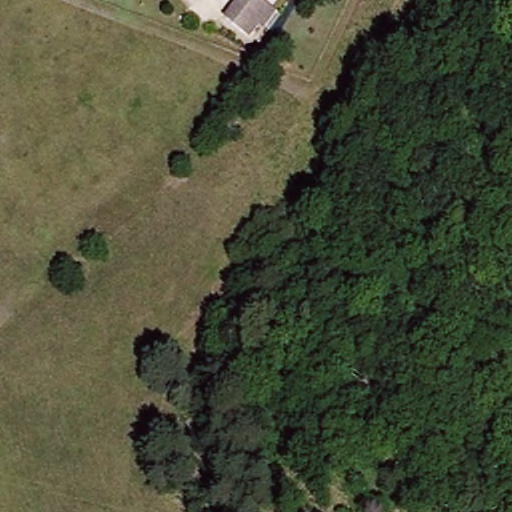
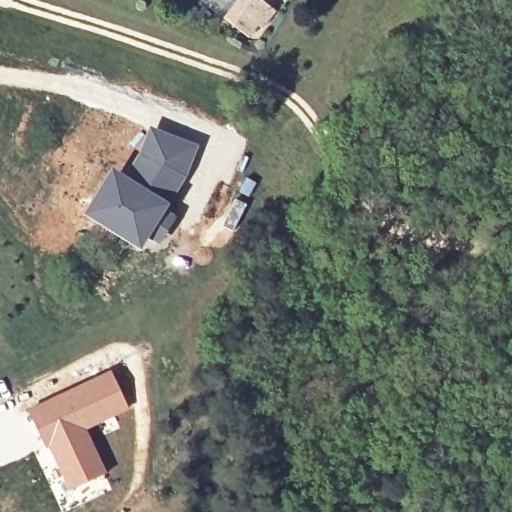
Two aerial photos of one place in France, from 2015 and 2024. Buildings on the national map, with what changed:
unchanged [(271,10),(249,39),(227,22),(244,0),(261,0),(260,2),(271,10)]
new [(112,166),(124,174),(149,125),(200,144),(185,179),(167,209),(177,216),(158,245),(148,238),(140,251),(81,215),(112,166)]
new [(110,368),(130,408),(87,429),(107,471),(68,491),(27,407),(110,368)]

